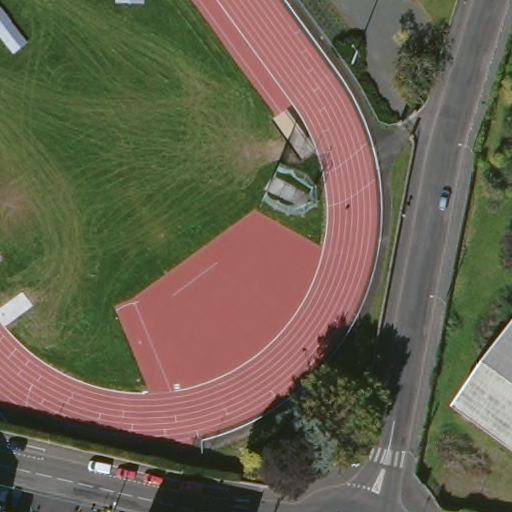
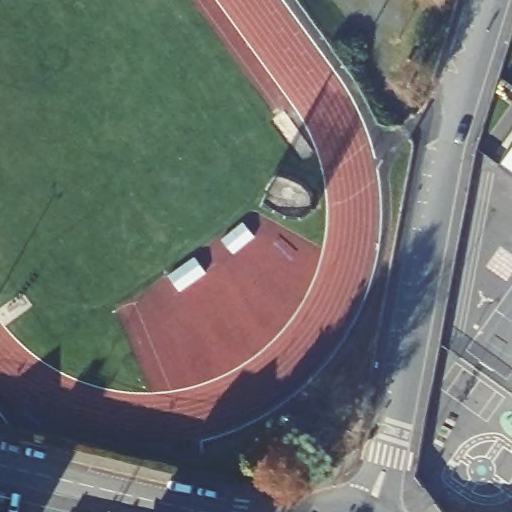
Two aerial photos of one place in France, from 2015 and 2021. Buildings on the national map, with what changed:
new [(504,159),(512,148),(512,165),(504,159)]
demolished [(512,334),(512,451),(457,411),(512,334)]
unchanged [(0,509),(11,512),(0,512),(0,509)]

